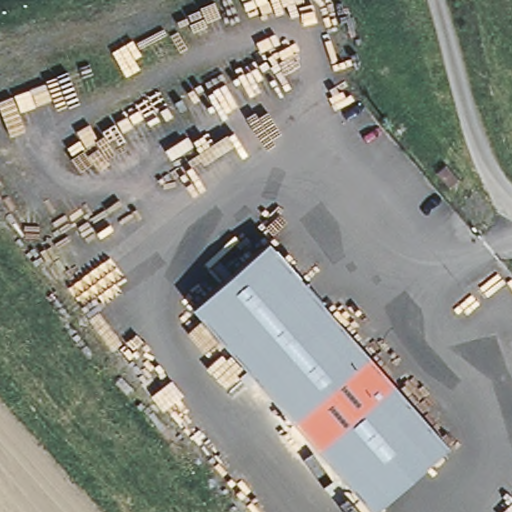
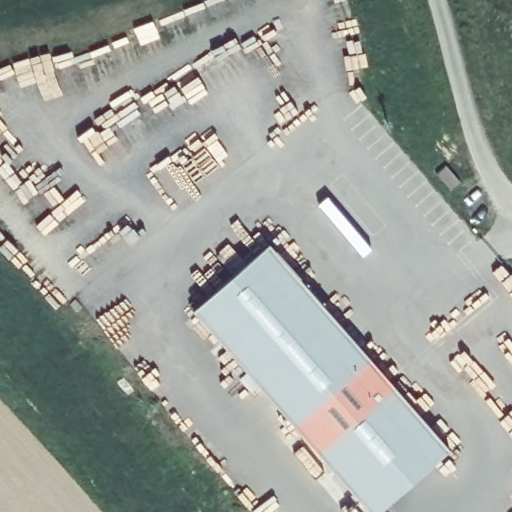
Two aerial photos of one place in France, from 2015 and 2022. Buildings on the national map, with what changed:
unchanged [(371,359),(293,426),(190,311),(267,243),(371,359)]
unchanged [(372,512),(293,426),(371,359),(450,447),(377,512),(372,512)]

